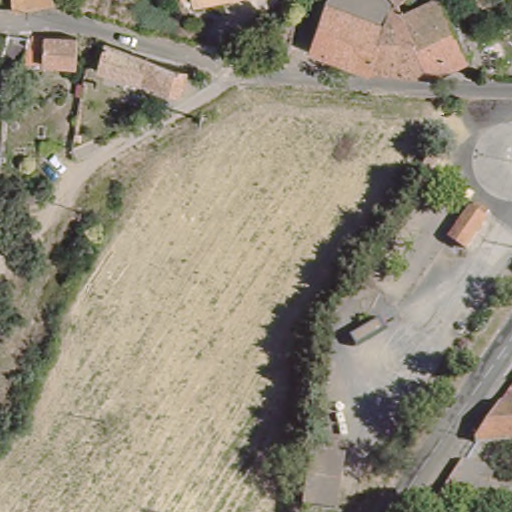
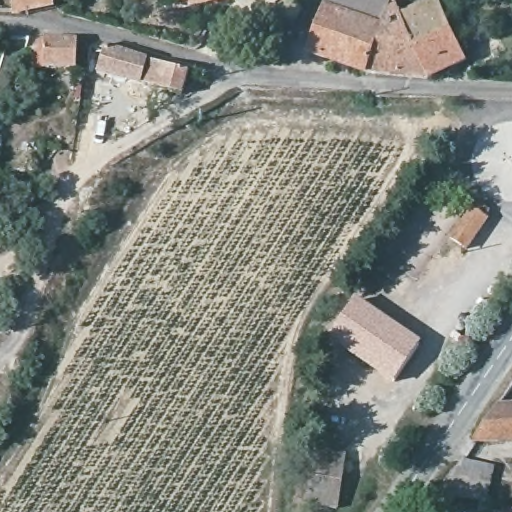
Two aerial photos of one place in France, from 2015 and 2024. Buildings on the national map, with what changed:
unchanged [(17,18),(15,0),(53,0),(55,11),(17,18)]
unchanged [(188,6),(188,0),(238,0),(188,6)]
unchanged [(385,7),(362,75),(304,57),(320,9),(325,0),(385,0),(386,1),(385,7)]
unchanged [(391,6),(386,1),(386,0),(398,0),(391,6)]
unchanged [(465,63),(449,71),(428,79),(398,19),(428,5),(435,2),(465,63)]
unchanged [(398,19),(428,79),(362,76),(362,75),(385,7),(394,11),(398,19)]
unchanged [(80,44),(81,74),(36,75),(35,61),(43,61),(42,43),(80,44)]
unchanged [(96,78),(105,52),(159,68),(190,77),(181,100),(96,78)]
unchanged [(422,171),(413,166),(423,150),(432,155),(422,171)]
unchanged [(463,216),(466,218),(470,212),(483,221),(479,228),(480,230),(461,258),(444,246),(463,216)]
new [(356,298),(420,342),(391,384),(328,341),(356,298)]
unchanged [(502,407),(512,393),(512,407),(502,407)]
unchanged [(472,450),(502,407),(512,407),(512,448),(472,450)]
unchanged [(339,460),(333,512),(322,512),(301,509),(307,456),(339,460)]
unchanged [(457,496),(449,512),(432,512),(445,493),(466,462),(496,474),(485,502),(491,502),(492,512),(479,512),(478,501),(457,496)]

